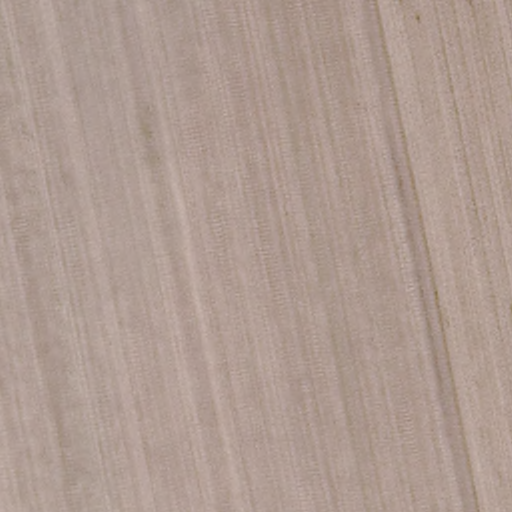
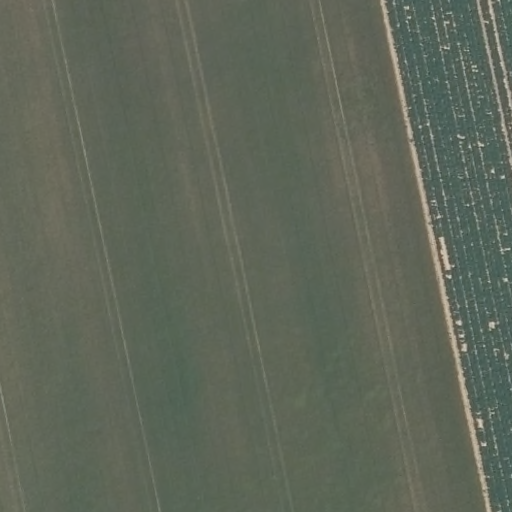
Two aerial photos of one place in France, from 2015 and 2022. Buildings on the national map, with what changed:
[]

